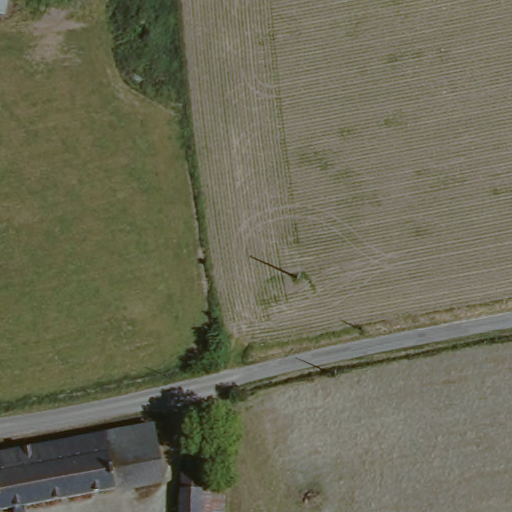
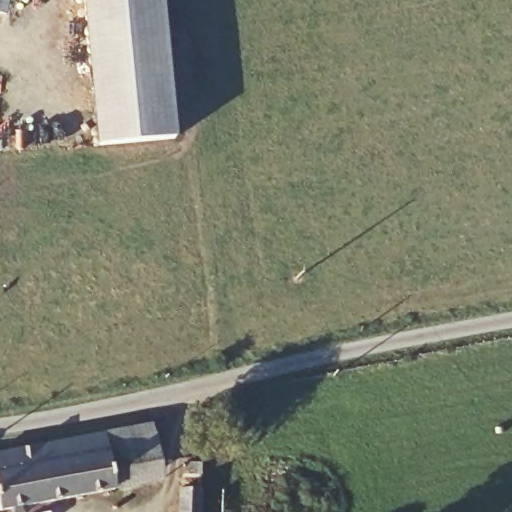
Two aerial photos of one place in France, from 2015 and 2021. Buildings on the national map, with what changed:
unchanged [(4,17),(0,16),(0,0),(7,0),(4,17)]
new [(175,149),(97,155),(85,0),(163,0),(175,149)]
unchanged [(112,430),(158,423),(166,477),(124,485),(112,430)]
unchanged [(112,430),(124,485),(80,492),(71,437),(112,430)]
unchanged [(28,501),(30,506),(19,508),(17,502),(4,505),(0,487),(0,449),(71,437),(80,492),(28,501)]
unchanged [(186,475),(188,463),(202,465),(201,475),(207,476),(205,496),(203,512),(178,512),(182,475),(186,475)]
unchanged [(227,497),(226,512),(203,512),(205,496),(227,497)]

